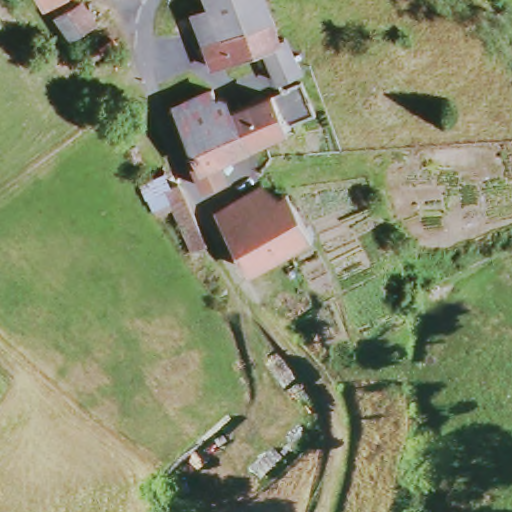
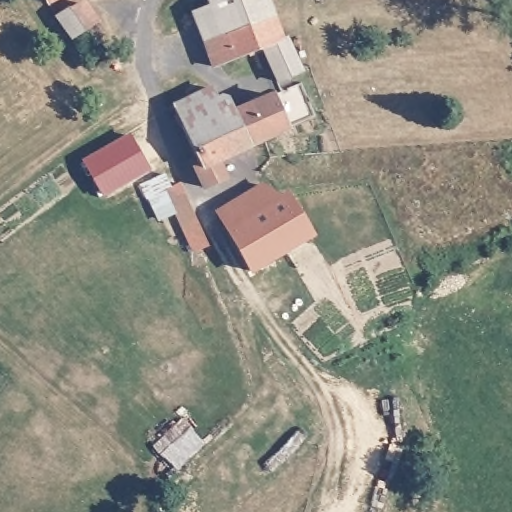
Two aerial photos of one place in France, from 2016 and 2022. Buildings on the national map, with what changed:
unchanged [(45,3),(43,0),(50,0),(45,3)]
unchanged [(278,44),(283,42),(296,73),(275,85),(262,50),(212,67),(192,10),(213,3),(212,0),(262,0),(278,44)]
unchanged [(83,1),(99,24),(69,41),(53,17),(83,1)]
unchanged [(194,166),(187,166),(184,156),(193,146),(177,106),(213,89),(217,97),(223,95),(229,98),(235,112),(251,148),(218,161),(225,178),(203,187),(194,166)]
unchanged [(251,148),(235,112),(272,98),(279,115),(288,131),(262,142),(251,148)]
new [(83,159),(130,133),(151,170),(104,196),(83,159)]
unchanged [(278,266),(273,257),(252,271),(218,209),(256,185),(267,188),(289,198),(311,232),(283,251),(289,260),(278,266)]
unchanged [(171,187),(201,244),(195,245),(193,248),(167,206),(152,210),(150,205),(171,187)]

